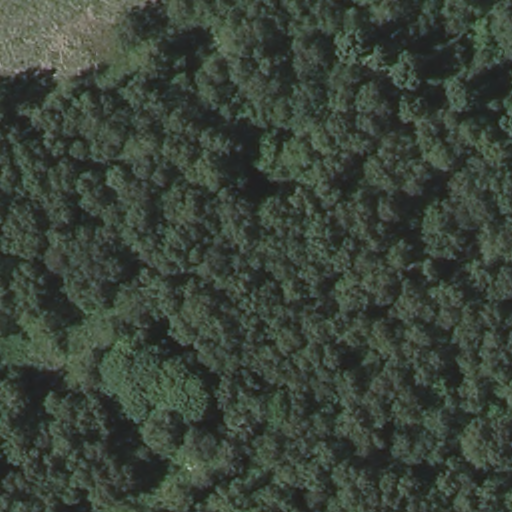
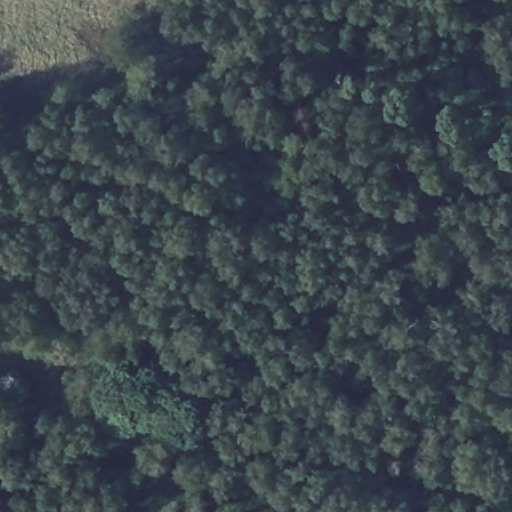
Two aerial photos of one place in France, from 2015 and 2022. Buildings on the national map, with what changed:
[]

